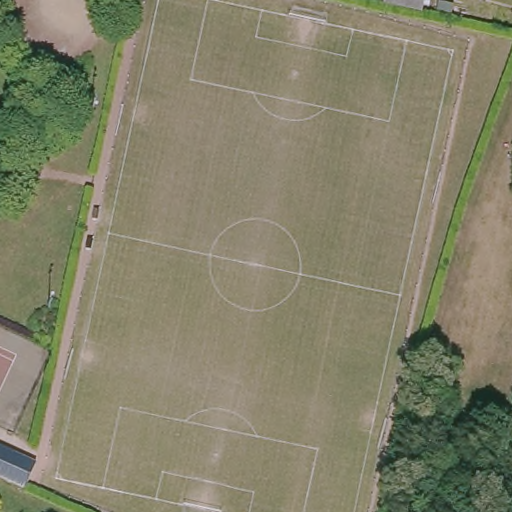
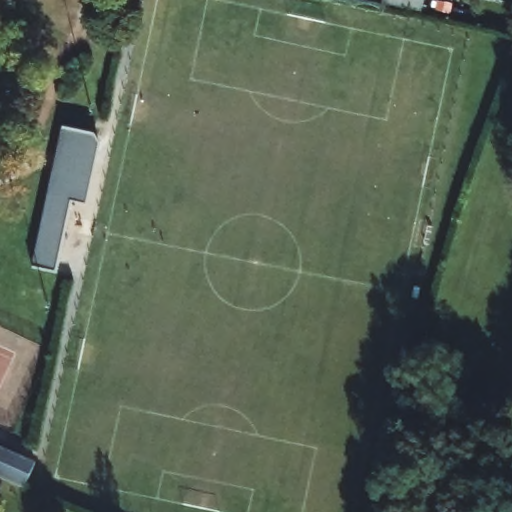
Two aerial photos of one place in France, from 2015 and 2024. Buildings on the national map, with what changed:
unchanged [(423,0),(420,12),(389,6),(382,4),(383,0),(423,0)]
new [(63,129),(99,137),(85,203),(71,200),(56,270),(33,265),(63,129)]
unchanged [(30,462),(35,463),(25,487),(0,476),(0,448),(30,462)]

